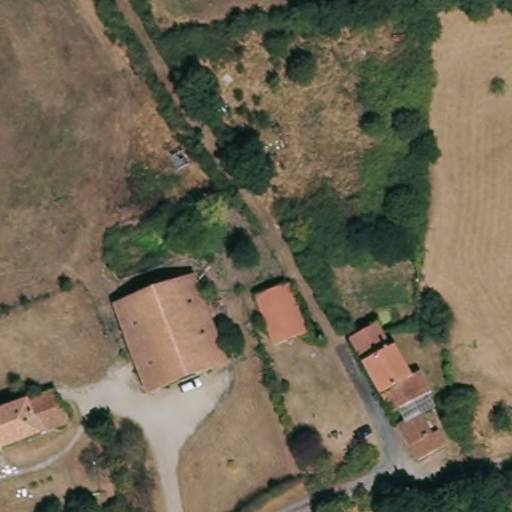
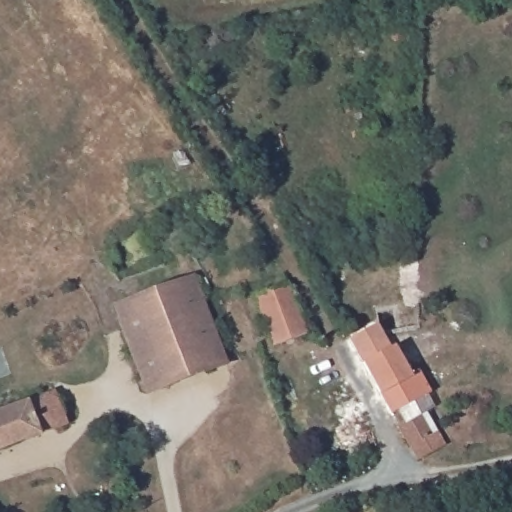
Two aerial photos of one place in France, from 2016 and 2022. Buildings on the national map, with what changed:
unchanged [(187,277),(225,362),(148,395),(113,310),(187,277)]
unchanged [(318,327),(271,349),(250,295),(291,278),(318,327)]
unchanged [(360,311),(369,332),(380,328),(399,357),(405,354),(416,375),(412,376),(419,390),(404,397),(414,418),(421,415),(428,427),(401,444),(400,441),(384,408),(389,405),(383,393),(378,397),(363,367),(363,366),(338,325),(360,311)]
unchanged [(18,403),(51,390),(65,427),(0,455),(0,411),(18,403)]

